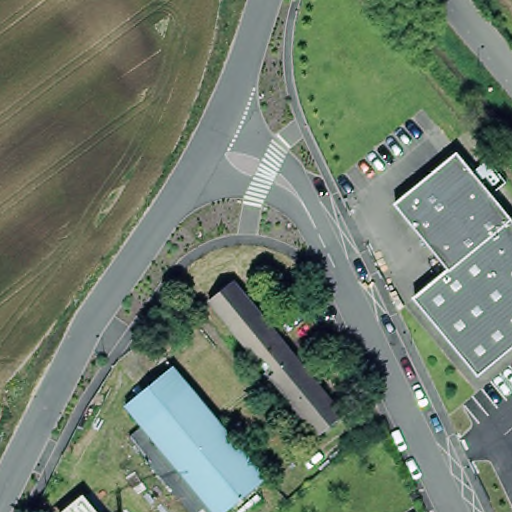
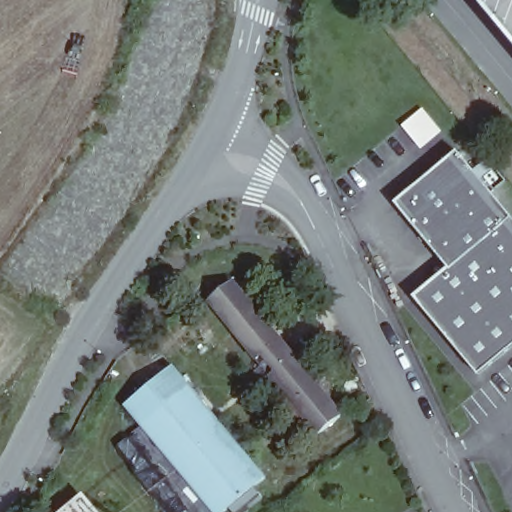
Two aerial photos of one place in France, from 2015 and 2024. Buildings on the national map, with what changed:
new [(512,43),(476,0),(512,0),(512,43)]
unchanged [(450,268),(400,202),(457,145),(512,208),(512,346),(483,370),(417,297),(450,268)]
unchanged [(220,292),(224,288),(229,286),(233,283),(239,281),(347,415),(322,436),(213,301),(216,297),(220,292)]
unchanged [(125,407),(173,367),(189,386),(142,426),(125,407)]
unchanged [(265,478),(224,512),(213,512),(142,426),(189,386),(265,478)]
new [(56,512),(79,493),(94,512),(56,512)]

